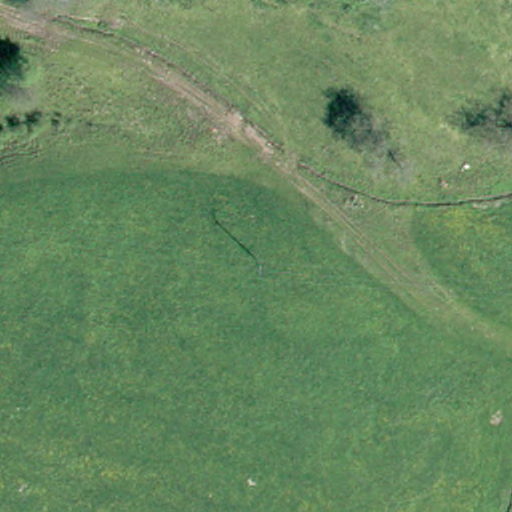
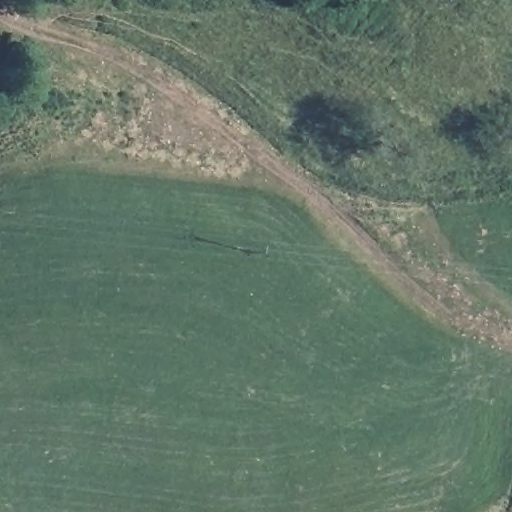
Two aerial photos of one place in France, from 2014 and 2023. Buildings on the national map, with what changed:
[]

